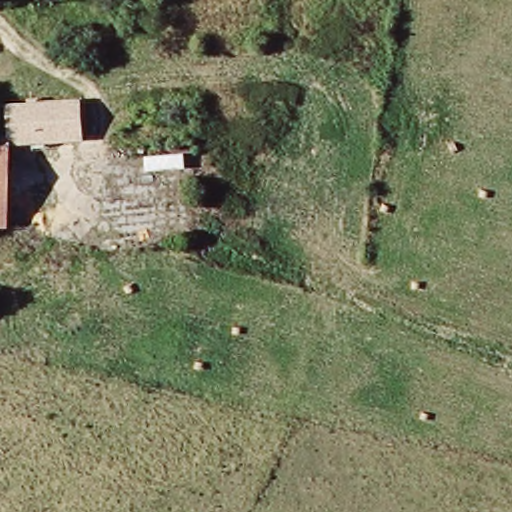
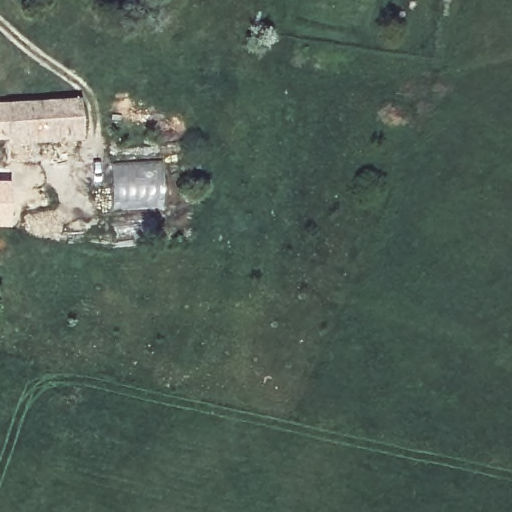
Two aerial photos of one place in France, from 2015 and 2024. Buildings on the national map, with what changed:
unchanged [(80,140),(38,141),(38,138),(7,140),(7,231),(0,231),(0,110),(78,103),(80,140)]
new [(163,159),(165,210),(111,211),(111,162),(163,159)]

